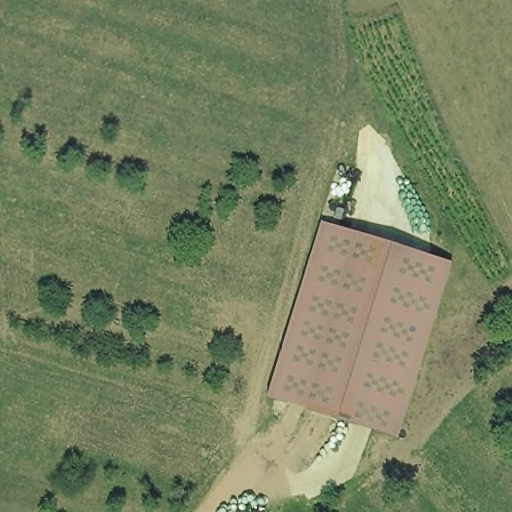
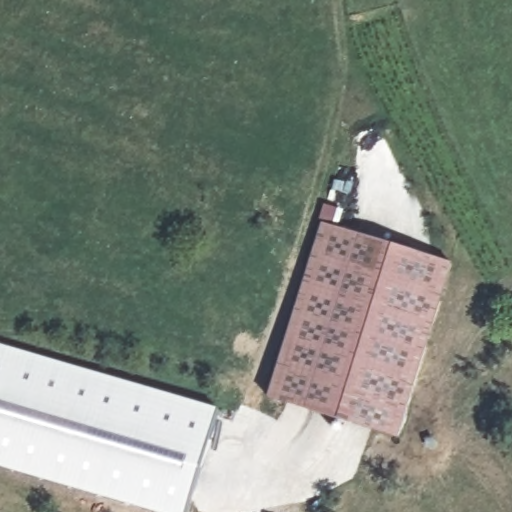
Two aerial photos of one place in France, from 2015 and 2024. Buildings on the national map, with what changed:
unchanged [(395,434),(269,398),(323,223),(452,259),(395,434)]
new [(217,407),(187,512),(156,512),(0,467),(0,344),(217,407)]

